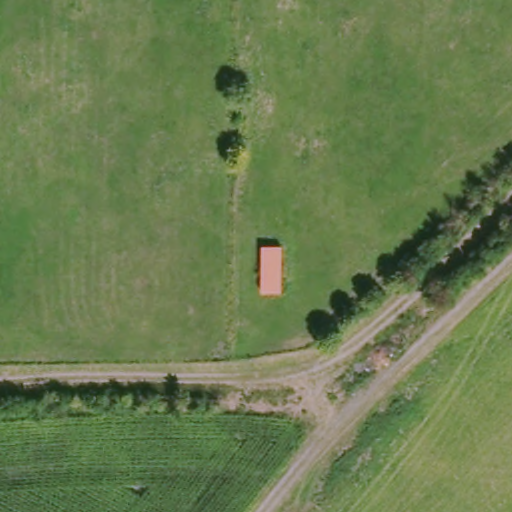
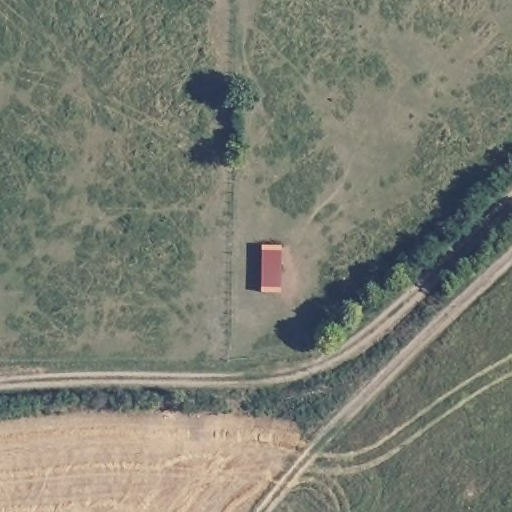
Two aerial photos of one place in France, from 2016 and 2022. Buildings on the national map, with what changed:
unchanged [(283,300),(261,300),(261,247),(286,246),(283,300)]

